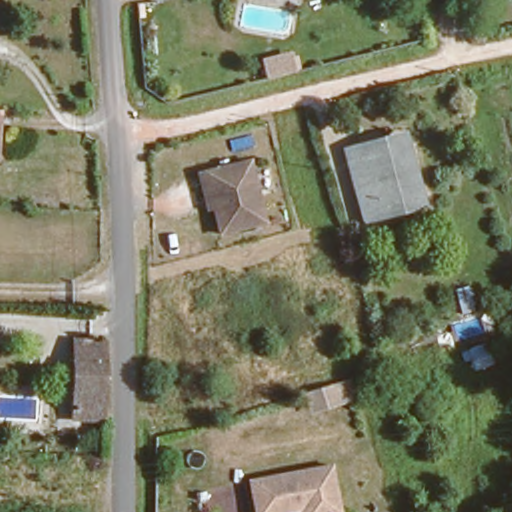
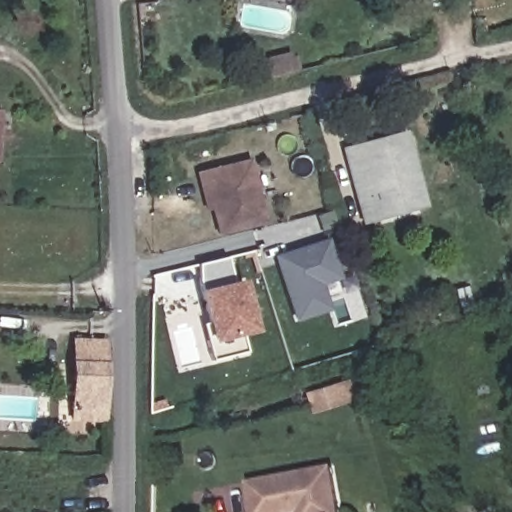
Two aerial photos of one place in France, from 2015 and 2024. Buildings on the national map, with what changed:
new [(286,52),(291,68),(261,78),(256,62),(286,52)]
unchanged [(3,131),(0,154),(0,108),(5,109),(3,131)]
unchanged [(367,228),(344,153),(405,132),(428,207),(367,228)]
unchanged [(197,189),(193,172),(249,158),(265,222),(222,232),(217,208),(203,211),(197,189)]
new [(324,284),(333,311),(295,322),(275,256),(331,238),(343,279),(324,284)]
new [(246,351),(213,359),(211,343),(199,290),(203,289),(199,264),(229,258),(237,281),(245,279),(258,332),(244,335),(246,351)]
unchanged [(66,423),(64,346),(75,345),(76,331),(94,330),(96,422),(66,423)]
unchanged [(291,387),(322,374),(333,369),(341,389),(329,393),(299,406),(291,387)]
unchanged [(307,509),(296,512),(255,512),(249,477),(329,459),(340,512),(308,512),(307,509)]

